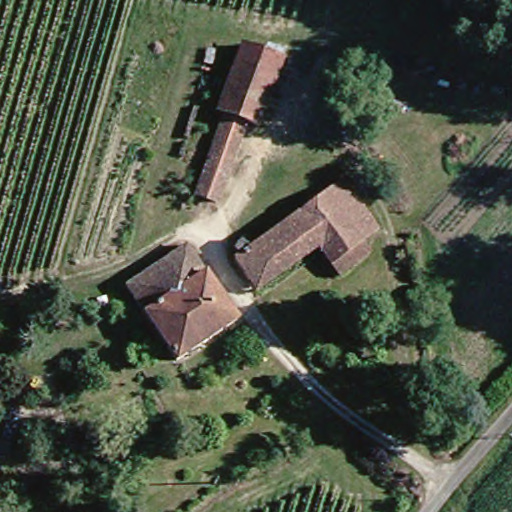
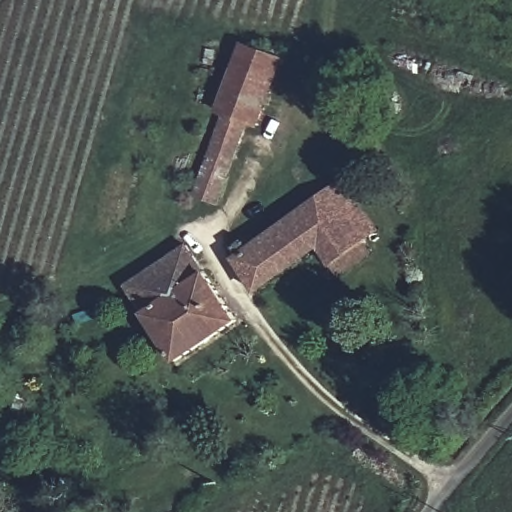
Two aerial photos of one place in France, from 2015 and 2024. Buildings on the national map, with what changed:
unchanged [(239,49),(276,68),(249,128),(240,125),(217,116),(210,113),(239,49)]
unchanged [(240,125),(205,201),(184,194),(217,116),(240,125)]
unchanged [(321,196),(339,183),(373,229),(357,242),(321,196)]
unchanged [(321,196),(357,242),(366,255),(321,288),(299,259),(241,300),(217,267),(321,196)]
unchanged [(230,326),(175,364),(120,290),(175,252),(230,326)]

